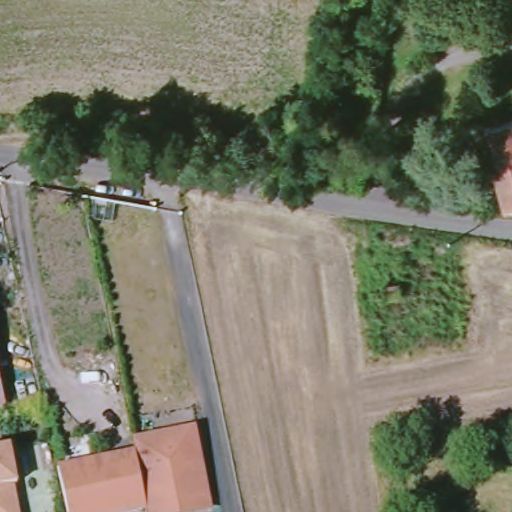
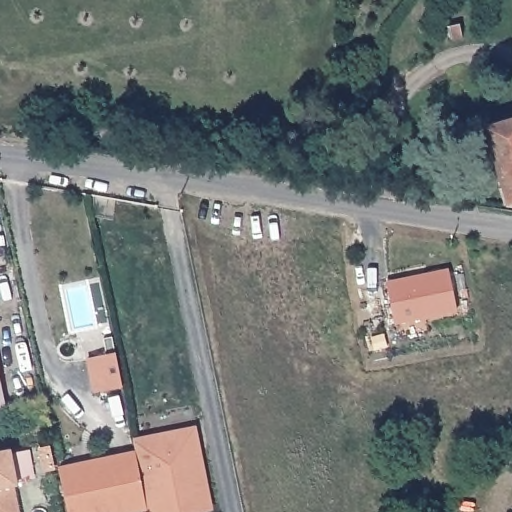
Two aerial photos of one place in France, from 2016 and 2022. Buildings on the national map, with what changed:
unchanged [(510,114),(512,120),(512,206),(506,205),(479,124),(510,114)]
new [(395,323),(386,281),(449,268),(457,310),(395,323)]
unchanged [(165,428),(166,432),(179,430),(178,425),(195,422),(210,500),(149,511),(149,510),(139,454),(135,433),(165,428)]
unchanged [(8,452),(15,487),(12,488),(16,512),(0,512),(0,454),(8,452)]
unchanged [(139,454),(149,510),(137,512),(68,512),(60,471),(139,454)]

